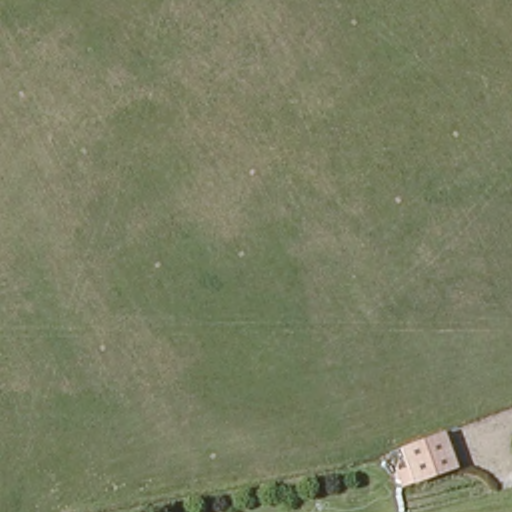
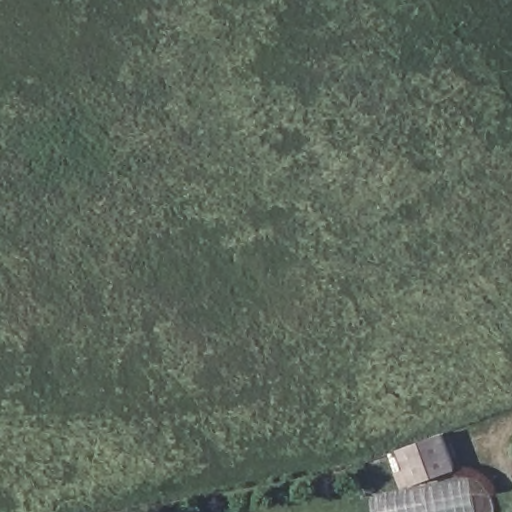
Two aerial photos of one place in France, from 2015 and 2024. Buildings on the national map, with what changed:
unchanged [(440,425),(445,440),(452,460),(410,476),(400,449),(397,441),(440,425)]
new [(471,476),(478,512),(375,512),(372,497),(471,476)]

